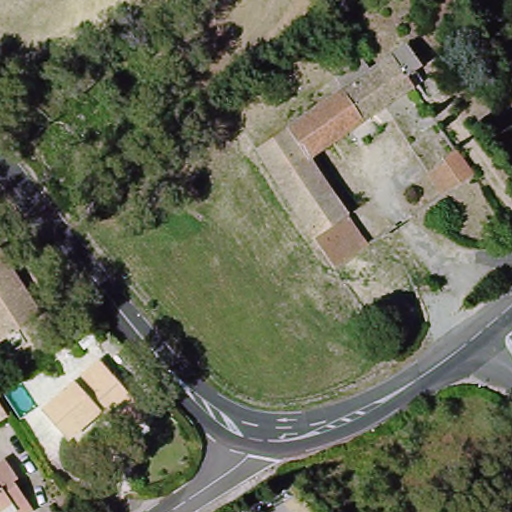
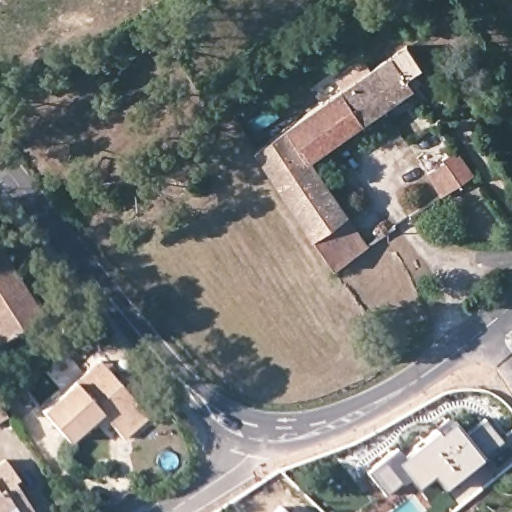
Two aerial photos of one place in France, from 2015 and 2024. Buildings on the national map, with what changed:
unchanged [(342,89),(335,77),(360,60),(369,71),(404,47),(417,67),(413,71),(420,82),(309,159),(347,217),(313,239),(254,150),(342,89)]
unchanged [(443,159),(440,155),(455,146),(472,170),(440,193),(425,171),(443,159)]
unchanged [(347,217),(367,246),(333,269),(313,239),(347,217)]
unchanged [(0,340),(0,252),(41,313),(0,340)]
demolished [(0,371),(0,343),(12,365),(0,371)]
unchanged [(103,365),(156,416),(129,444),(102,418),(75,445),(45,415),(103,365)]
new [(401,452),(449,417),(464,433),(482,420),(500,441),(482,457),(442,490),(430,475),(415,488),(407,478),(384,495),(365,471),(397,447),(401,452)]
unchanged [(0,512),(0,460),(2,459),(16,478),(11,481),(28,505),(32,512),(31,512),(0,512)]
new [(286,512),(275,512),(281,506),(286,512)]

